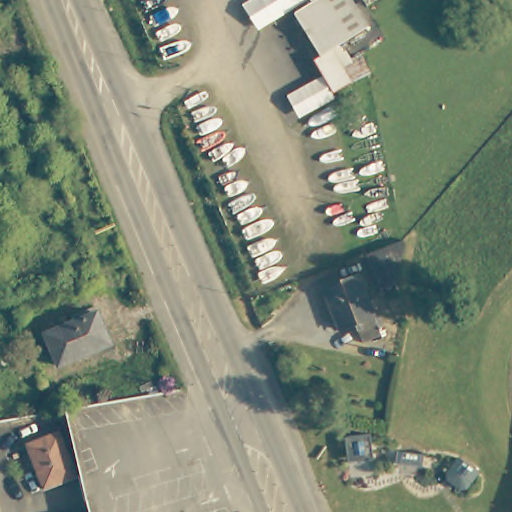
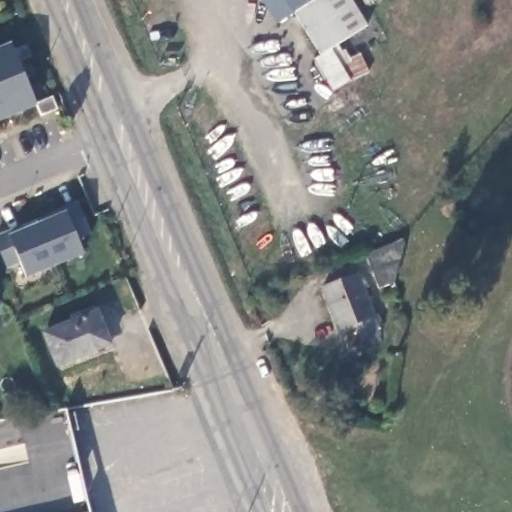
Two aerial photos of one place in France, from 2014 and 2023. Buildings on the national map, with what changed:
unchanged [(310,0),(311,1),(293,13),(260,34),(244,9),(257,0),(310,0)]
unchanged [(367,73),(332,93),(325,80),(313,60),(320,56),(293,13),(311,1),(313,0),(351,0),(367,27),(331,49),(339,63),(357,54),(367,73)]
unchanged [(313,0),(311,1),(310,0),(313,0)]
new [(37,104),(53,97),(58,110),(42,116),(37,106),(0,121),(0,48),(12,44),(36,104),(37,104)]
new [(0,235),(78,202),(92,235),(80,240),(84,255),(27,278),(20,264),(8,270),(0,251),(0,235)]
unchanged [(405,244),(395,284),(378,290),(366,256),(402,240),(405,244)]
unchanged [(357,275),(381,335),(362,343),(358,331),(364,329),(362,323),(339,331),(323,289),(357,275)]
unchanged [(97,311),(112,344),(59,366),(45,333),(97,311)]
unchanged [(77,475),(45,488),(27,444),(60,431),(77,475)]

